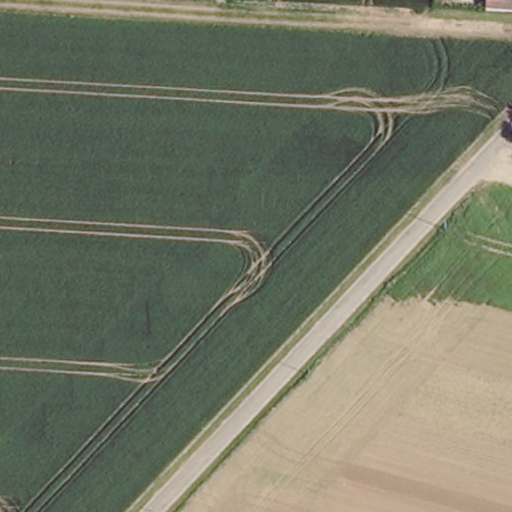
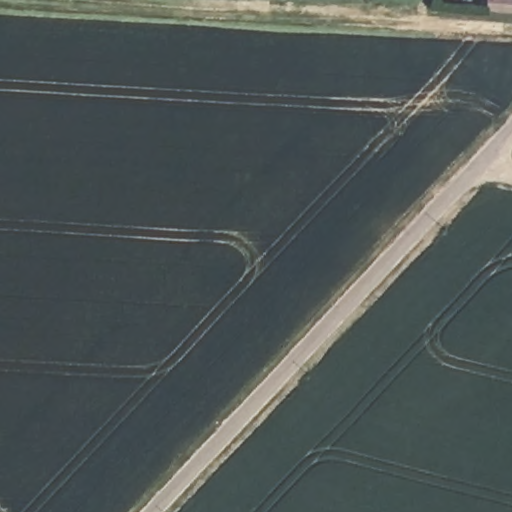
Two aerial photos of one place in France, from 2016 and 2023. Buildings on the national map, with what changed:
unchanged [(499,13),(487,12),(487,0),(512,0),(512,14),(499,13)]

